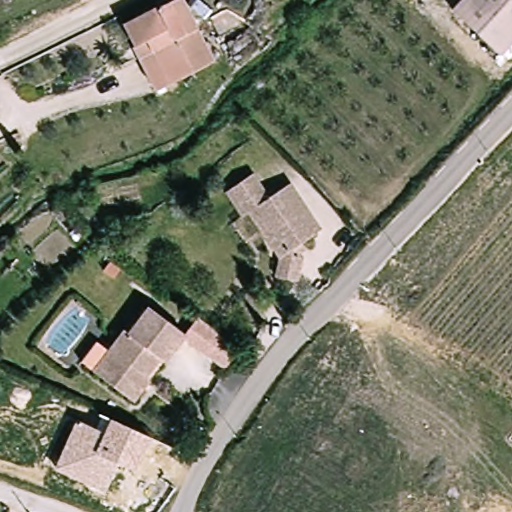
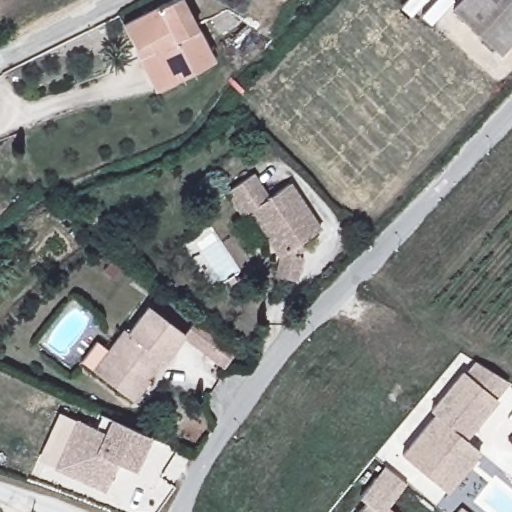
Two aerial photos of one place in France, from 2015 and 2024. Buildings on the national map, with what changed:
unchanged [(512,0),(512,40),(500,52),(453,7),(460,0),(512,0)]
unchanged [(175,3),(213,66),(172,86),(148,50),(132,54),(118,33),(175,3)]
unchanged [(297,254),(302,261),(295,281),(275,276),(280,256),(251,210),(243,214),(227,189),(255,173),(270,197),(291,183),(320,230),(304,241),(308,248),(297,254)]
unchanged [(135,398),(125,391),(93,368),(107,348),(123,327),(127,330),(147,303),(185,330),(197,313),(238,345),(225,363),(182,333),(165,358),(160,355),(146,374),(150,377),(135,398)]
new [(434,413),(430,409),(462,370),(466,373),(475,361),(510,382),(495,398),(498,400),(466,439),(482,452),(448,493),(401,454),(434,413)]
unchanged [(110,418),(149,434),(135,468),(117,460),(104,490),(56,470),(74,421),(104,432),(110,418)]
new [(367,502),(359,496),(385,466),(407,484),(387,506),(395,512),(359,512),(367,502)]

